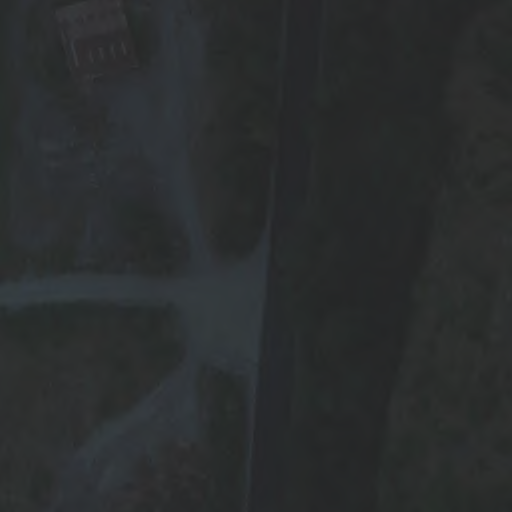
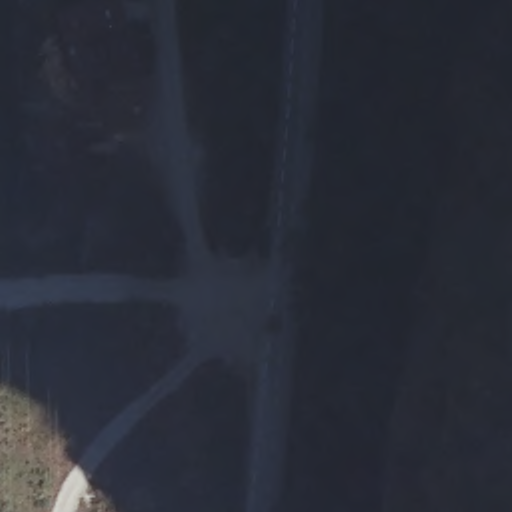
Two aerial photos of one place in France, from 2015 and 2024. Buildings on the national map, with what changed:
unchanged [(94,0),(120,0),(141,72),(68,81),(51,10),(94,0)]

